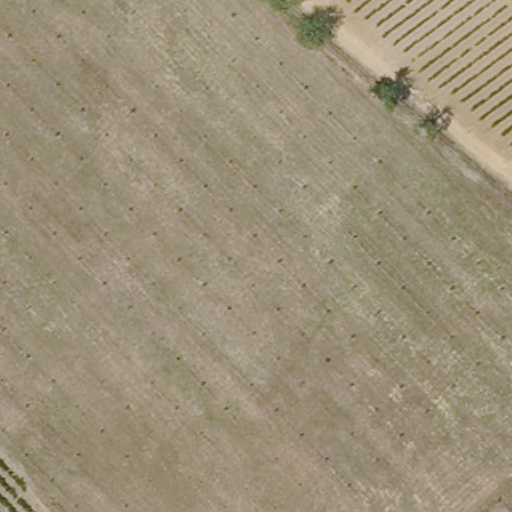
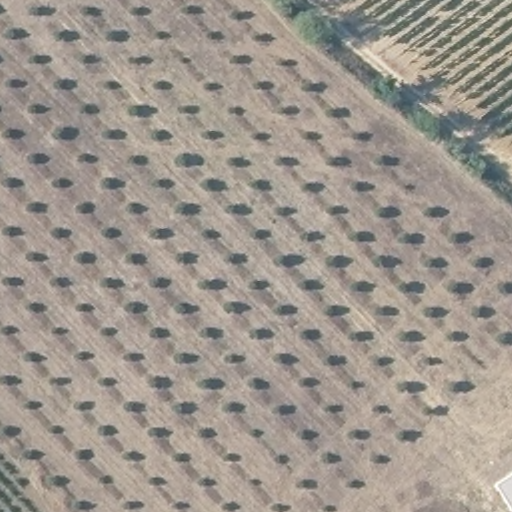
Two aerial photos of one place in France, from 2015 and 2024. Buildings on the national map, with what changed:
new [(512,474),(512,511),(495,485),(512,474)]

